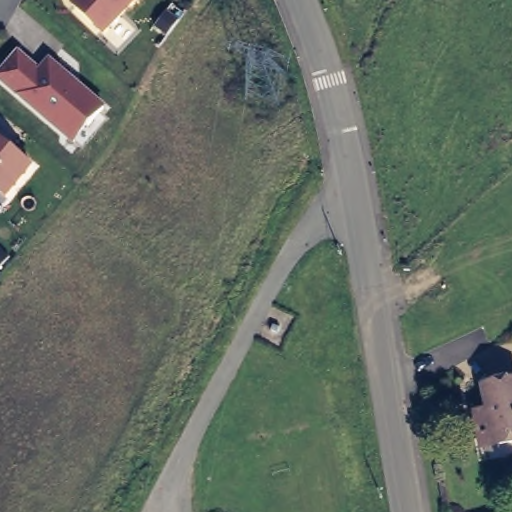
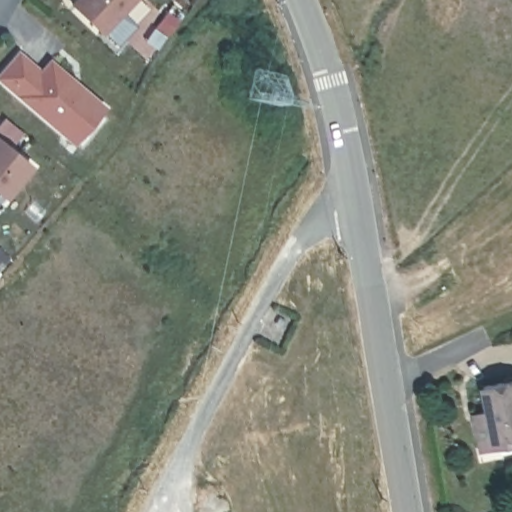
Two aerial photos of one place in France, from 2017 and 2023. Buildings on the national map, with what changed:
unchanged [(122,18),(132,28),(117,44),(105,33),(103,35),(68,4),(72,0),(138,0),(122,18)]
unchanged [(0,83),(0,70),(19,49),(39,67),(48,56),(105,108),(75,146),(0,83)]
unchanged [(0,196),(0,138),(35,166),(6,201),(0,196)]
unchanged [(500,449),(497,444),(483,447),(477,415),(492,412),(488,387),(512,383),(512,447),(500,449)]

